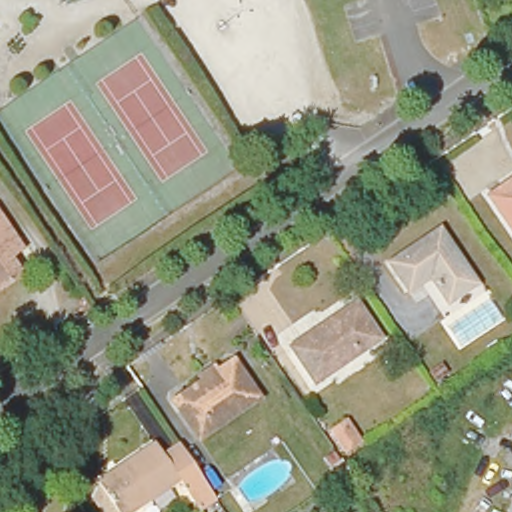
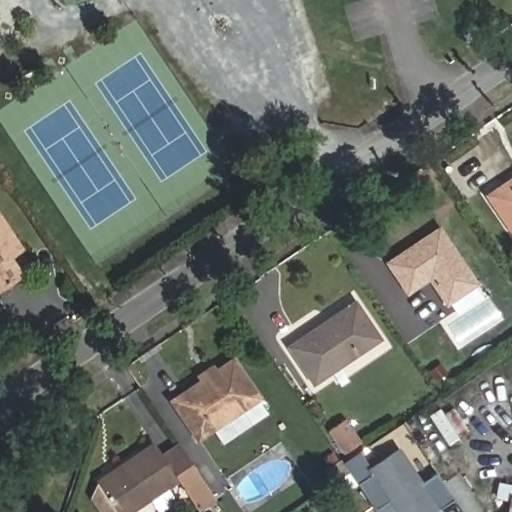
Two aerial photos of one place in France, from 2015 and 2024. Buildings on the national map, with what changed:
unchanged [(492,192),(512,179),(512,221),(492,192)]
unchanged [(484,277),(449,297),(434,273),(416,286),(396,256),(448,222),(484,277)]
unchanged [(0,229),(8,241),(15,252),(4,261),(15,276),(0,286),(0,229)]
unchanged [(292,342),(360,297),(383,329),(313,376),(292,342)]
unchanged [(235,356),(262,397),(200,437),(174,398),(235,356)]
unchanged [(204,510),(192,491),(180,476),(126,511),(105,480),(159,445),(167,457),(185,446),(208,480),(221,498),(204,510)]
new [(438,508),(441,512),(395,512),(388,501),(374,510),(343,463),(361,452),(369,467),(399,447),(423,483),(437,474),(454,500),(438,508)]
unchanged [(509,496),(512,496),(512,512),(506,512),(509,496)]

